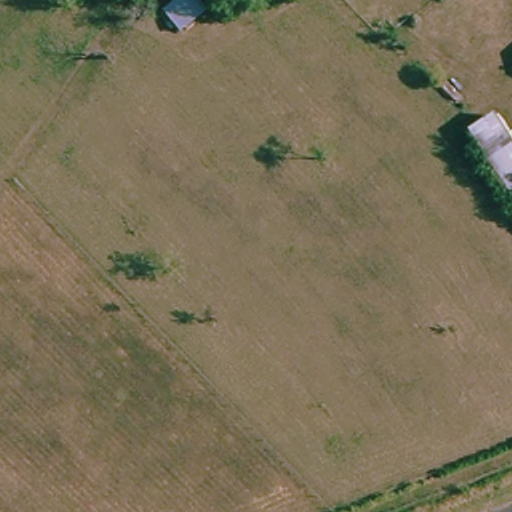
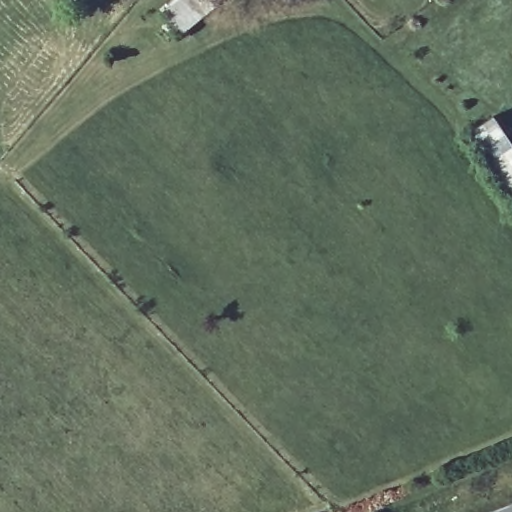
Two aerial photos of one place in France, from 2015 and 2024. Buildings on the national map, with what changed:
unchanged [(176,0),(220,0),(222,1),(182,34),(164,11),(176,0)]
unchanged [(512,137),(512,194),(509,195),(468,132),(497,113),(512,137)]

